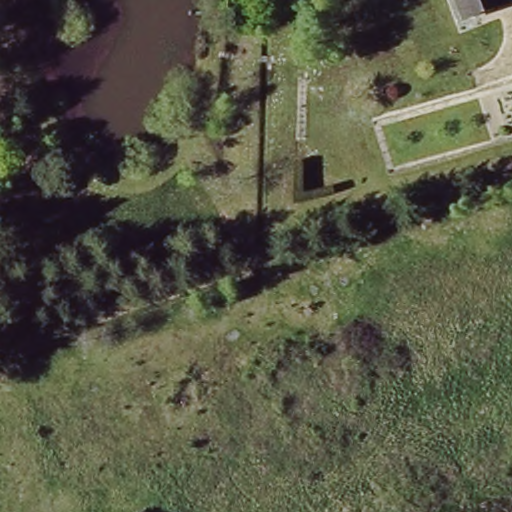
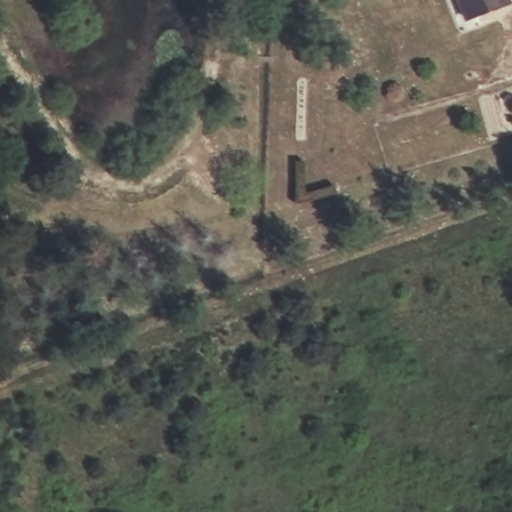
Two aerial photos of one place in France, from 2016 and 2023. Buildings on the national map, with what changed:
unchanged [(510,0),(512,4),(512,7),(473,28),(461,7),(457,0),(510,0)]

